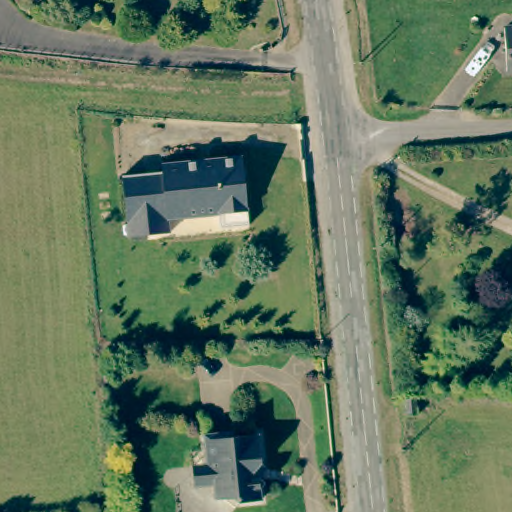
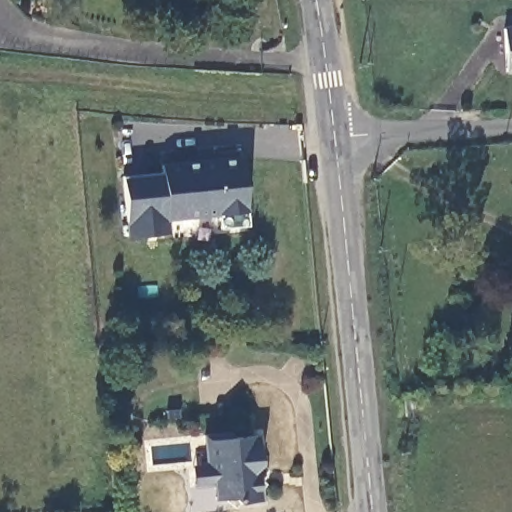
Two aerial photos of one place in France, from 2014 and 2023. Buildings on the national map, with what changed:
unchanged [(501,30),(512,29),(512,69),(503,70),(501,30)]
unchanged [(250,230),(222,232),(220,218),(170,222),(171,236),(130,240),(125,179),(165,175),(164,168),(204,165),(216,164),(245,161),(250,230)]
unchanged [(190,458),(204,457),(201,427),(229,426),(229,430),(256,429),(257,455),(250,466),(257,472),(259,495),(235,496),(227,492),(212,492),(212,478),(190,479),(190,458)]

